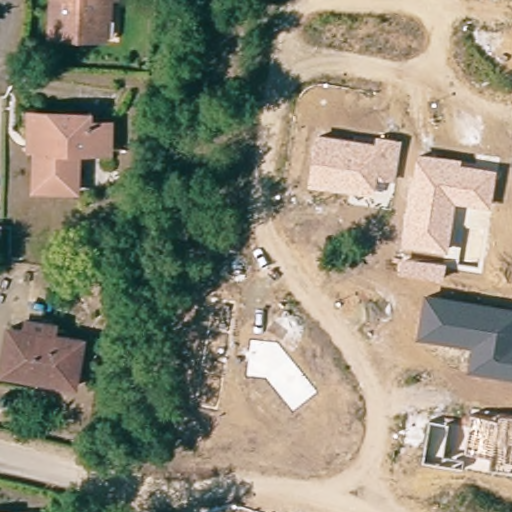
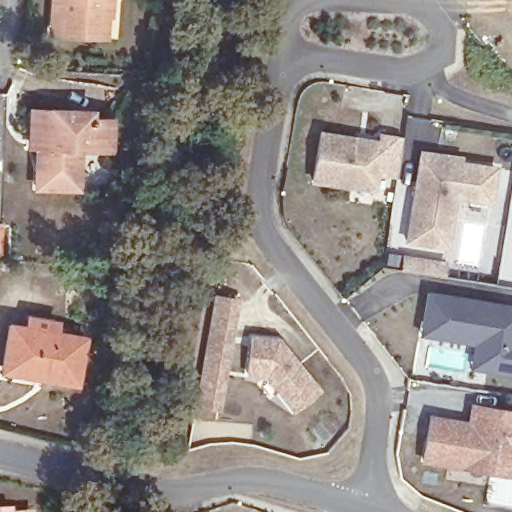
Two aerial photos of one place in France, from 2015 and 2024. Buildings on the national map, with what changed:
unchanged [(51,0),(105,0),(104,10),(100,10),(98,31),(57,30),(49,30),(51,0)]
unchanged [(83,125),(120,125),(120,154),(88,152),(88,191),(46,191),(46,172),(51,172),(52,153),(40,152),(40,115),(54,115),(82,115),(83,125)]
unchanged [(318,129),(376,138),(377,131),(403,135),(396,177),(377,175),(375,191),(309,183),(318,129)]
unchanged [(403,244),(419,148),(462,155),(462,160),(497,165),(491,204),(456,199),(448,250),(403,244)]
unchanged [(398,269),(401,252),(447,260),(445,277),(398,269)]
unchanged [(467,369),(470,344),(418,335),(425,289),(512,305),(512,376),(467,369)]
new [(206,326),(212,295),(235,300),(230,330),(225,358),(216,407),(193,403),(202,355),(206,326)]
unchanged [(12,322),(29,325),(32,317),(58,322),(57,332),(85,337),(77,382),(43,376),(44,370),(5,362),(12,322)]
new [(268,380),(244,376),(250,335),(280,337),(321,389),(293,413),(268,380)]
new [(512,409),(512,480),(419,462),(430,414),(467,420),(469,401),(512,409)]
unchanged [(32,505),(34,512),(4,512),(3,510),(32,505)]

